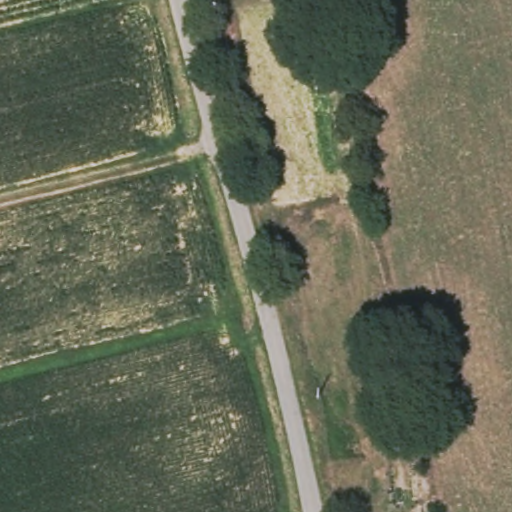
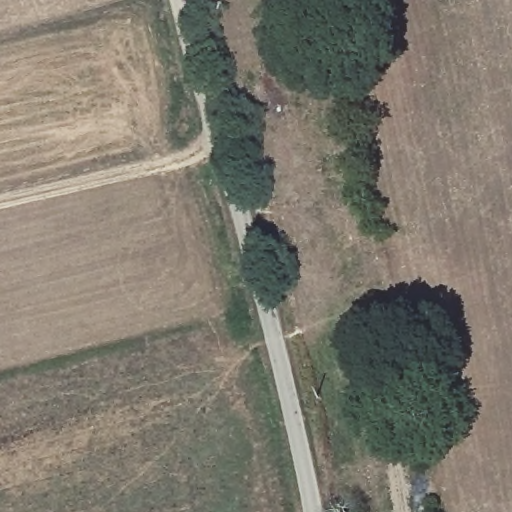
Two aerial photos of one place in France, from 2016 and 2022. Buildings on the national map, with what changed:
[]

